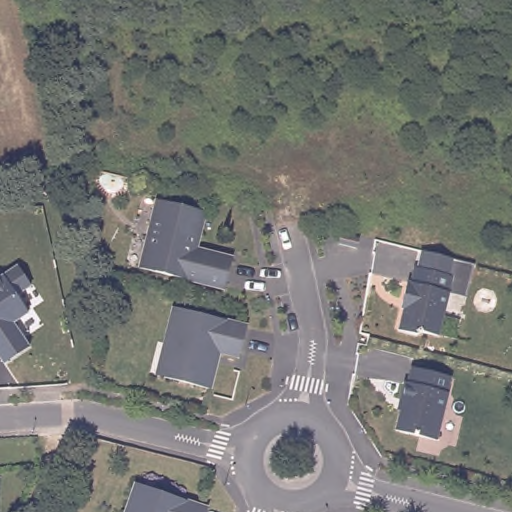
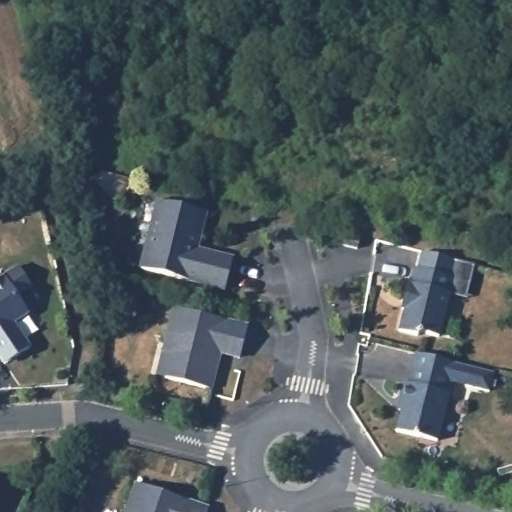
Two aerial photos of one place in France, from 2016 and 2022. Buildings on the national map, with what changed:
unchanged [(205,213),(196,250),(232,258),(224,290),(139,269),(156,201),(205,213)]
unchanged [(357,237),(354,246),(336,242),(338,232),(357,237)]
unchanged [(420,251),(455,259),(474,262),(464,296),(449,292),(452,280),(413,271),(420,251)]
unchanged [(28,347),(0,366),(0,277),(17,265),(32,287),(16,297),(27,315),(14,323),(28,347)]
unchanged [(452,280),(437,340),(421,336),(416,339),(397,335),(405,304),(402,303),(406,286),(409,286),(413,271),(452,280)]
unchanged [(168,348),(177,313),(250,331),(244,357),(224,352),(214,394),(168,382),(160,381),(168,348)]
unchanged [(448,393),(449,393),(437,441),(396,430),(404,400),(401,400),(405,382),(408,383),(412,367),(452,377),(448,393)]
unchanged [(137,488),(203,512),(129,512),(137,488)]

